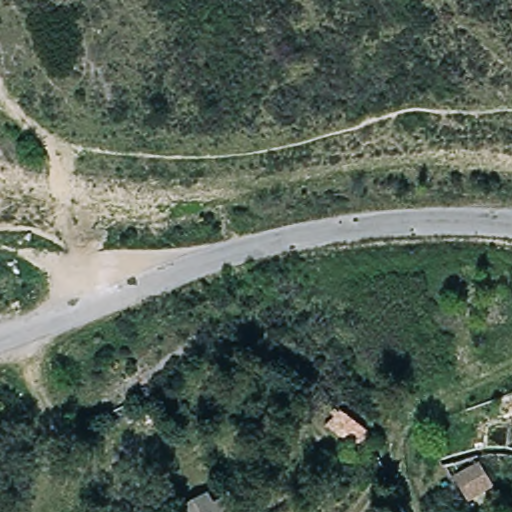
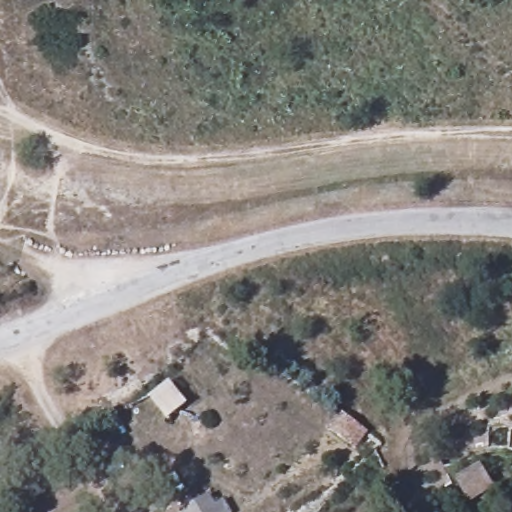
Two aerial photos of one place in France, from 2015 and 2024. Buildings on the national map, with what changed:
unchanged [(363,435),(353,451),(323,427),(332,412),(363,435)]
unchanged [(487,486),(467,498),(452,475),(473,462),(487,486)]
unchanged [(198,512),(213,504),(218,512),(198,512)]

